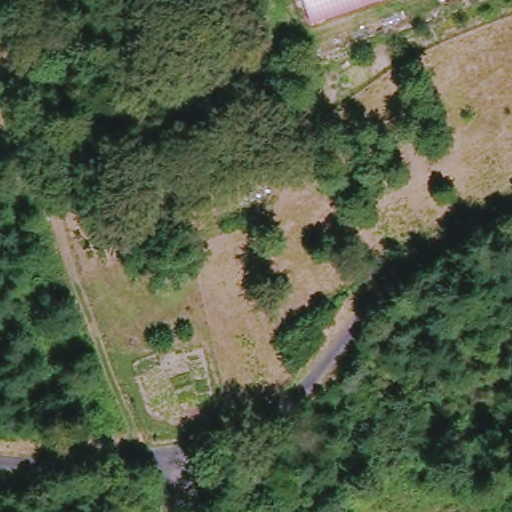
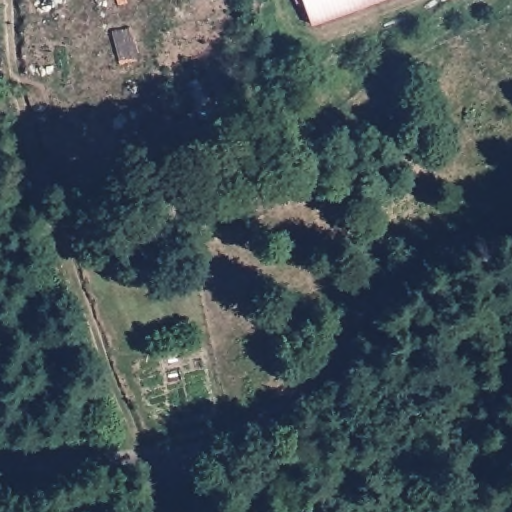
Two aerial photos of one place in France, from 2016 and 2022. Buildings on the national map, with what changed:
unchanged [(299,0),(382,0),(308,26),(299,0)]

